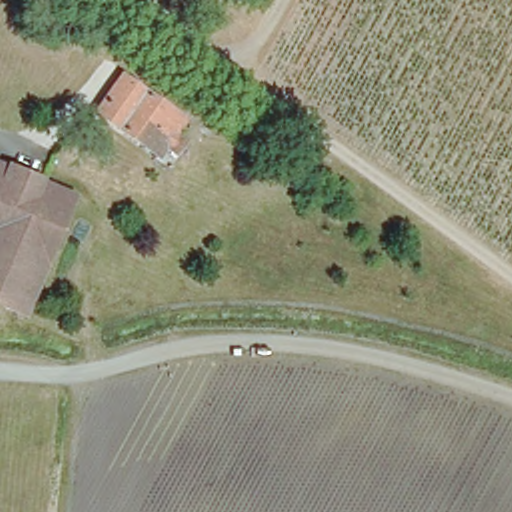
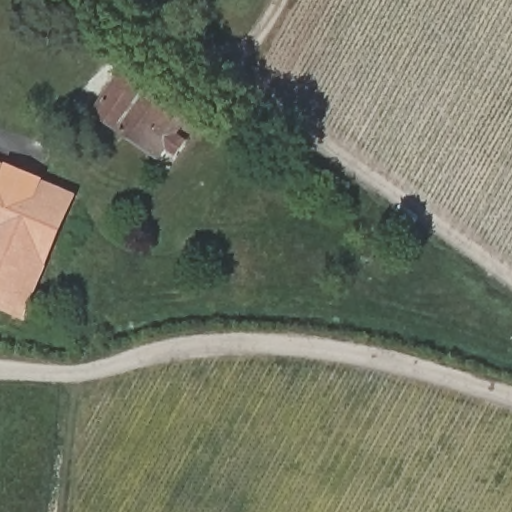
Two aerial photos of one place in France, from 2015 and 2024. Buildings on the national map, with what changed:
unchanged [(180,109),(170,124),(180,131),(171,145),(161,139),(155,147),(89,102),(115,64),(180,109)]
unchanged [(287,164),(273,154),(282,142),(296,151),(287,164)]

